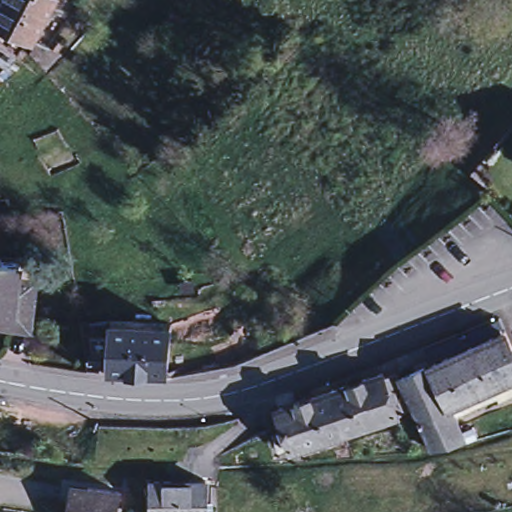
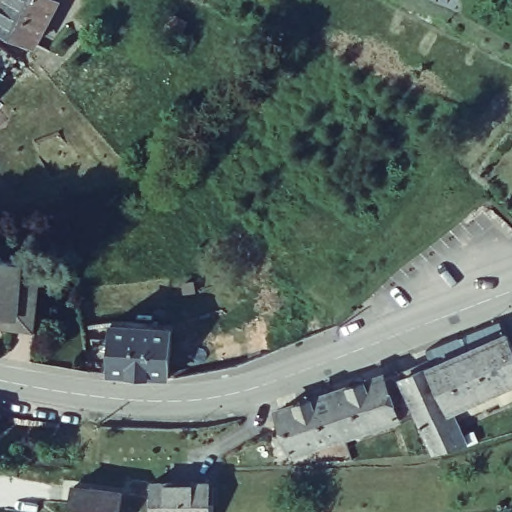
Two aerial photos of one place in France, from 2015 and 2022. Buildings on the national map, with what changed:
unchanged [(0,9),(4,0),(56,0),(58,1),(49,16),(33,47),(0,28),(0,9)]
unchanged [(0,85),(0,51),(17,66),(0,85)]
unchanged [(27,315),(0,312),(0,247),(33,251),(27,315)]
unchanged [(173,325),(169,377),(108,371),(114,320),(173,325)]
unchanged [(420,355),(496,327),(501,338),(499,339),(427,370),(420,355)]
unchanged [(512,366),(512,387),(446,417),(459,447),(430,459),(397,383),(427,370),(499,339),(512,366)]
unchanged [(379,382),(393,424),(340,441),(326,398),(379,382)]
unchanged [(287,458),(274,415),(326,398),(340,441),(287,458)]
unchanged [(206,483),(207,512),(152,512),(151,484),(206,483)]
unchanged [(122,494),(119,512),(68,512),(72,487),(122,494)]

